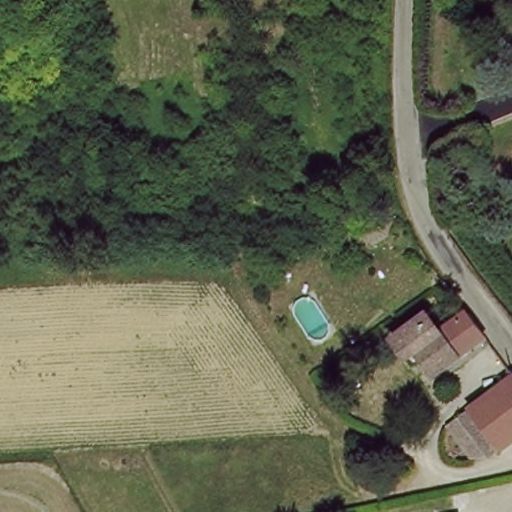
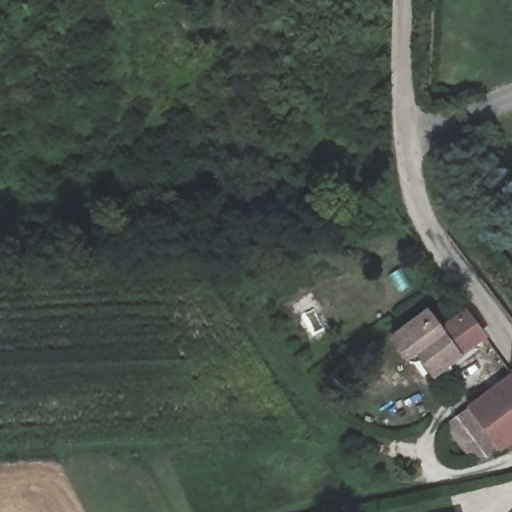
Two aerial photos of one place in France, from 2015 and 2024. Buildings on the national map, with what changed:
unchanged [(437,379),(421,357),(405,365),(389,341),(426,315),(442,338),(452,330),(443,316),(461,304),(469,317),(487,343),(437,379)]
unchanged [(471,406),(512,374),(512,437),(499,446),(471,406)]
unchanged [(480,463),(449,426),(471,406),(499,446),(480,463)]

